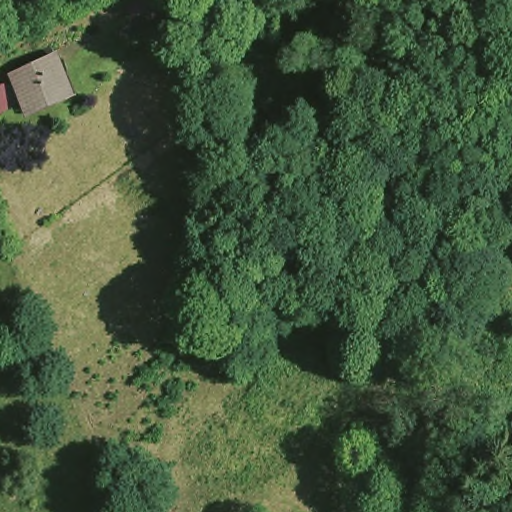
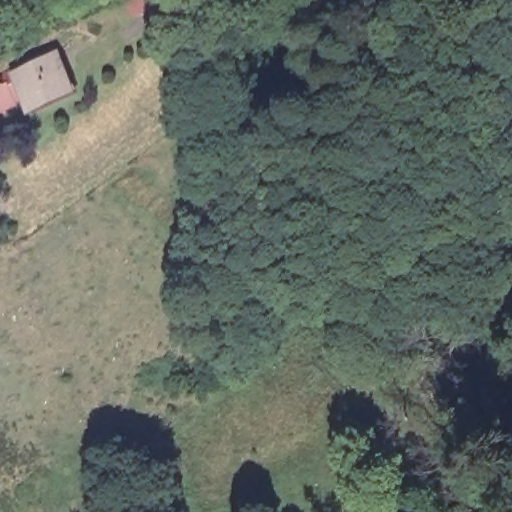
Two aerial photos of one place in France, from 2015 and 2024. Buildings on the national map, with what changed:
unchanged [(164,1),(135,14),(128,0),(164,0),(164,1)]
unchanged [(0,111),(0,88),(13,82),(12,76),(18,73),(27,68),(25,64),(62,48),(67,58),(70,67),(80,89),(41,105),(35,91),(21,97),(22,101),(0,111)]

